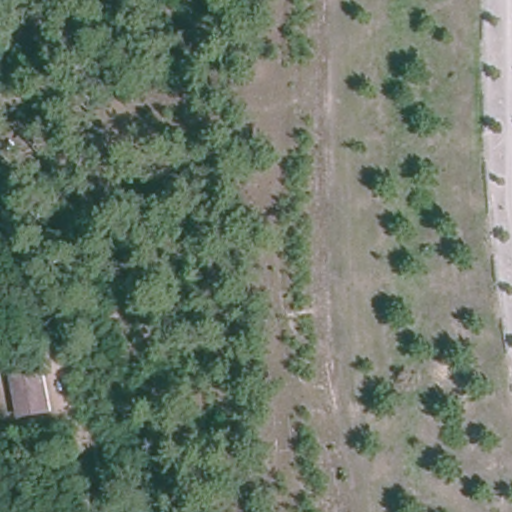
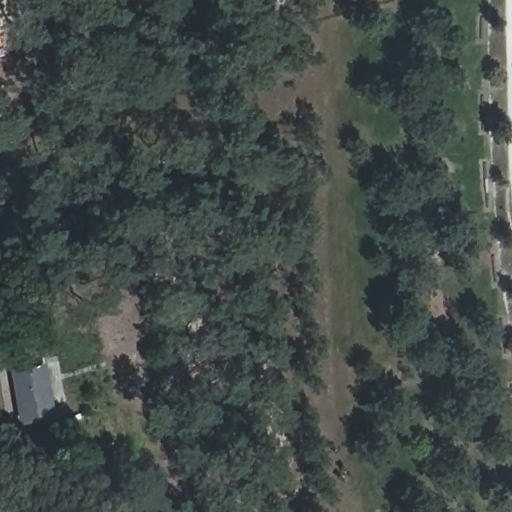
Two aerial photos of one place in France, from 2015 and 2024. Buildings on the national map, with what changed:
unchanged [(2,209),(0,210),(0,205),(2,209)]
unchanged [(40,371),(47,413),(22,418),(14,375),(40,371)]

